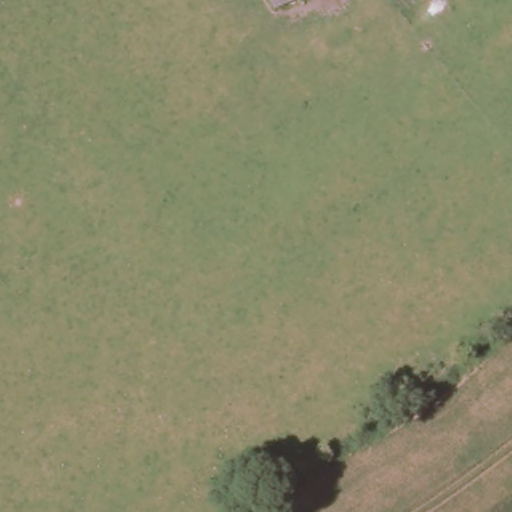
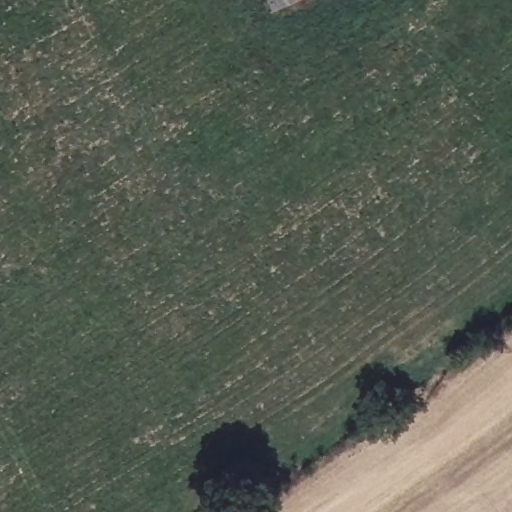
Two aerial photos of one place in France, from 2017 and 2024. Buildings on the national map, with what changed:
unchanged [(270,0),(295,0),(276,12),(270,0)]

